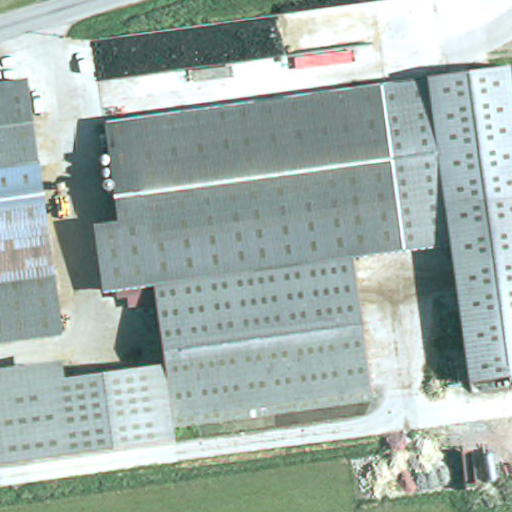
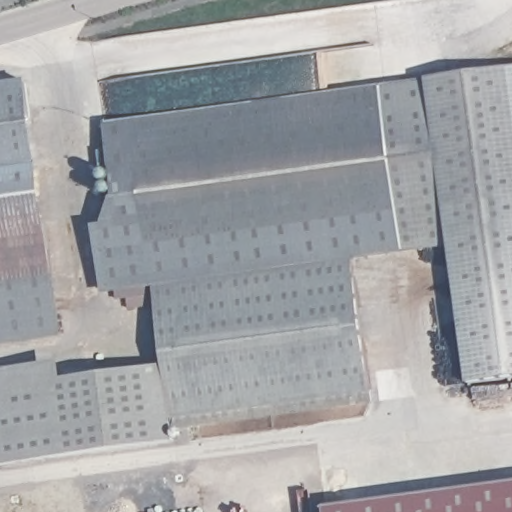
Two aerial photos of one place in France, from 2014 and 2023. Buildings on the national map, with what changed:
unchanged [(512,71),(512,191),(438,200),(445,243),(397,247),(376,86),(512,71)]
unchanged [(56,332),(0,339),(0,80),(22,76),(56,332)]
unchanged [(159,366),(146,281),(125,285),(119,242),(102,121),(376,86),(397,247),(350,255),(365,397),(250,414),(164,396),(159,366)]
unchanged [(512,191),(512,372),(463,378),(445,243),(438,200),(512,191)]
unchanged [(99,289),(93,245),(119,242),(125,285),(99,289)]
unchanged [(60,381),(159,366),(164,396),(168,426),(170,447),(0,465),(0,371),(58,366),(60,381)]
unchanged [(168,426),(164,396),(250,414),(168,426)]
new [(512,484),(512,512),(330,512),(330,509),(512,484)]

